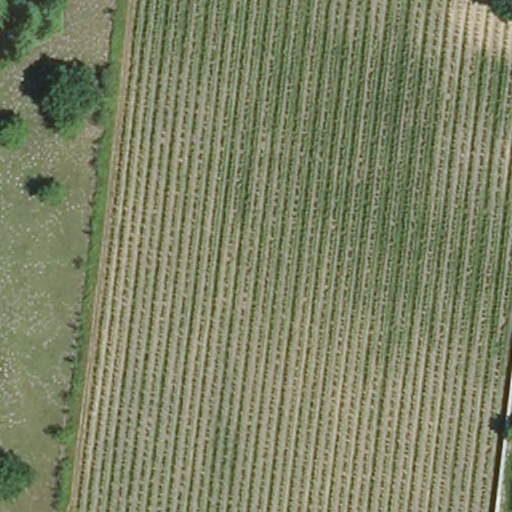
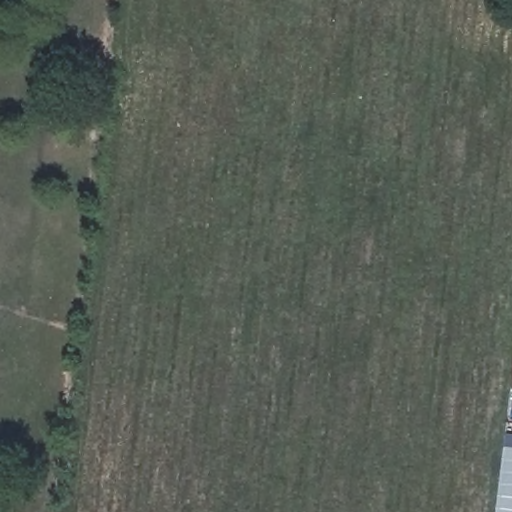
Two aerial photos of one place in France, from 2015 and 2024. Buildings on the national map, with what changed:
new [(512,512),(499,512),(509,433),(512,433),(512,512)]

